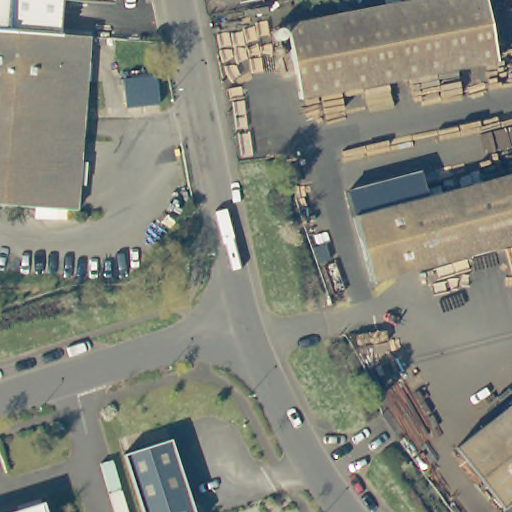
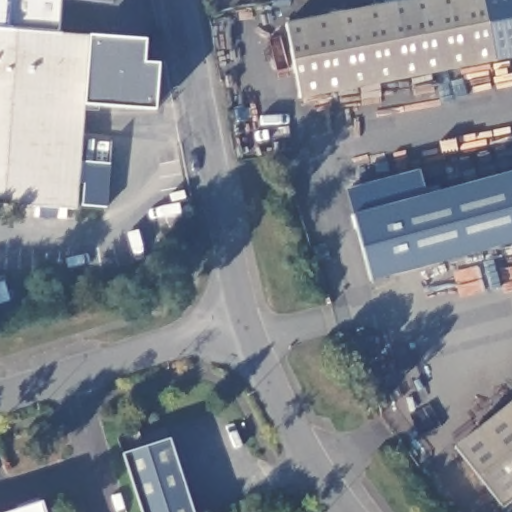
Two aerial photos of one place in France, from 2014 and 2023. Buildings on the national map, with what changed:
unchanged [(301,99),(287,29),(426,0),(512,0),(512,61),(301,99)]
unchanged [(91,40),(80,214),(0,208),(0,34),(32,36),(91,40)]
new [(91,40),(89,37),(144,41),(144,64),(159,65),(155,110),(86,105),(87,105),(91,40)]
demolished [(155,59),(152,42),(164,39),(168,57),(155,59)]
new [(85,141),(111,144),(110,164),(106,207),(80,206),(85,141)]
unchanged [(371,288),(352,226),(363,222),(357,192),(421,173),(428,204),(512,181),(512,249),(371,288)]
unchanged [(473,475),(456,454),(512,408),(512,512),(504,512),(473,475)]
unchanged [(166,438),(190,512),(138,512),(119,455),(166,438)]
unchanged [(36,502),(40,512),(4,512),(36,502)]

